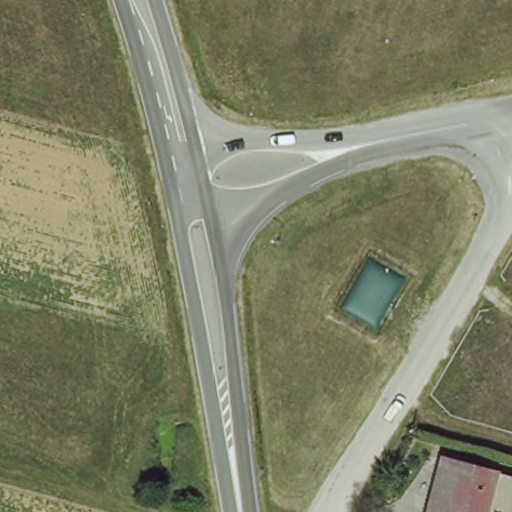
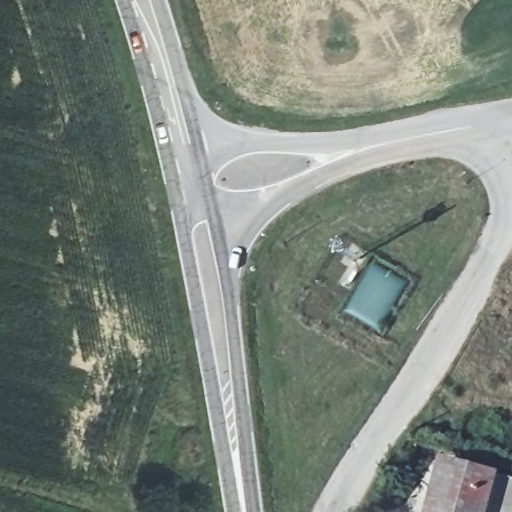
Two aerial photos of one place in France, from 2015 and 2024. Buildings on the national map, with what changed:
unchanged [(446,461),(512,477),(512,512),(433,512),(446,461)]

